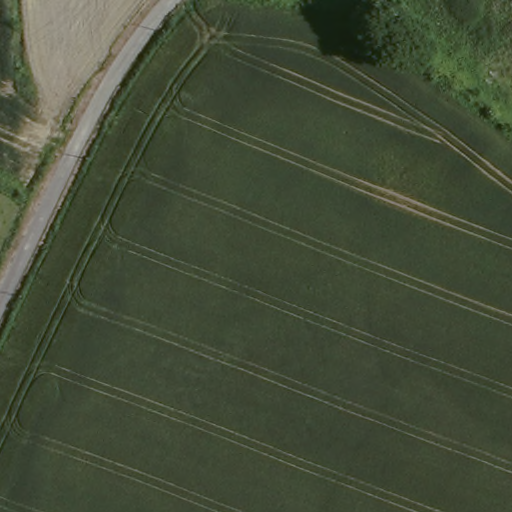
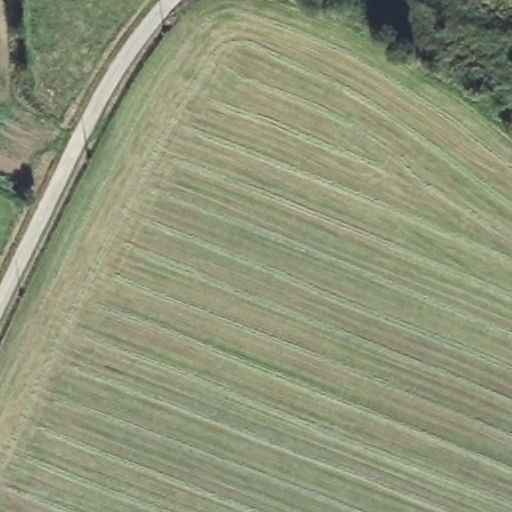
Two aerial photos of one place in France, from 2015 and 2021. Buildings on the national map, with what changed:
[]

